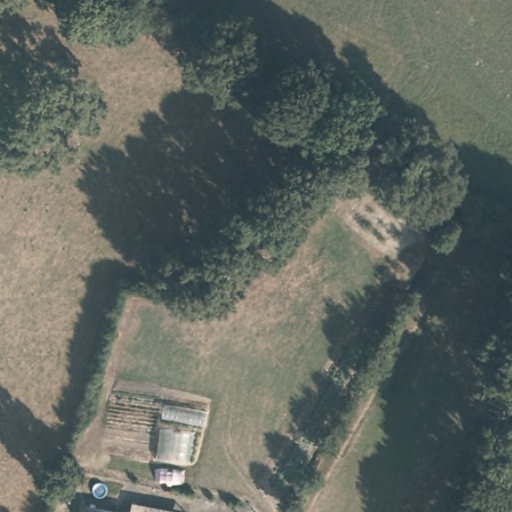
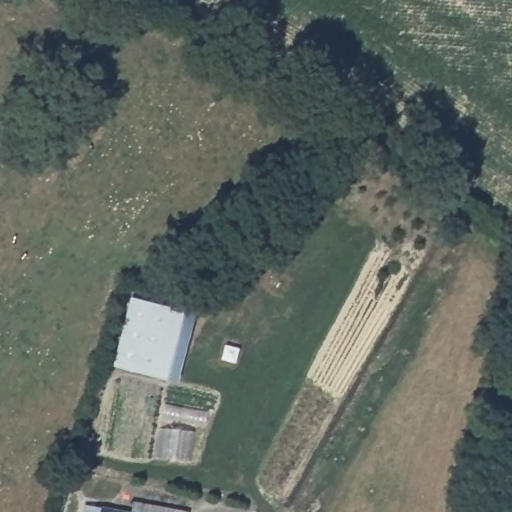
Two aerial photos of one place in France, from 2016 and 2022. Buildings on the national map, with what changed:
new [(132,295),(196,311),(177,382),(113,367),(132,295)]
unchanged [(116,512),(90,512),(91,507),(116,512)]

